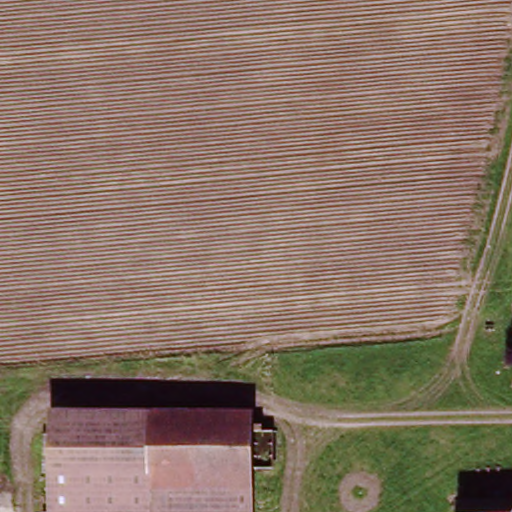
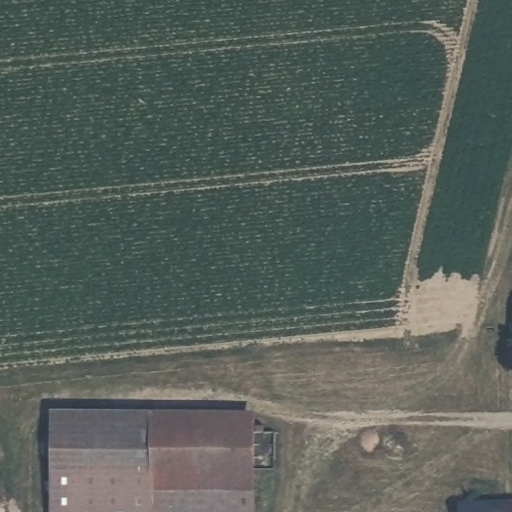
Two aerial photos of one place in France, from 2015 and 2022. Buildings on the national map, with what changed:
unchanged [(149,477),(51,475),(52,416),(149,419),(149,477)]
unchanged [(254,421),(252,480),(149,477),(149,419),(254,421)]
unchanged [(251,512),(50,512),(51,475),(149,477),(252,480),(251,512)]
unchanged [(454,512),(453,506),(506,504),(506,512),(454,512)]

